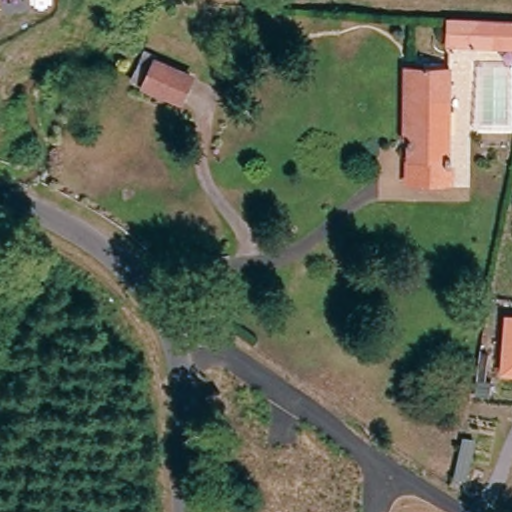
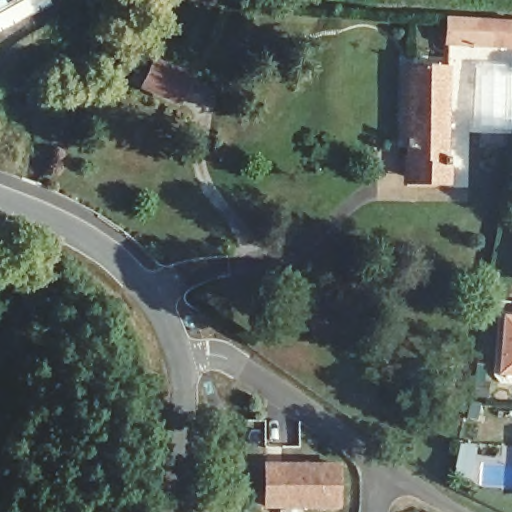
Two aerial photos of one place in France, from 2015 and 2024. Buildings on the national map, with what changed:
unchanged [(444,27),(512,31),(512,56),(443,52),(444,27)]
unchanged [(181,103),(144,86),(132,81),(143,56),(155,61),(192,78),(181,103)]
unchanged [(418,73),(443,73),(443,167),(448,167),(448,176),(443,176),(443,191),(417,191),(417,176),(405,176),(405,79),(418,79),(418,73)]
unchanged [(512,320),(512,374),(502,373),(508,319),(512,320)]
new [(265,466),(337,466),(337,507),(265,507),(265,466)]

